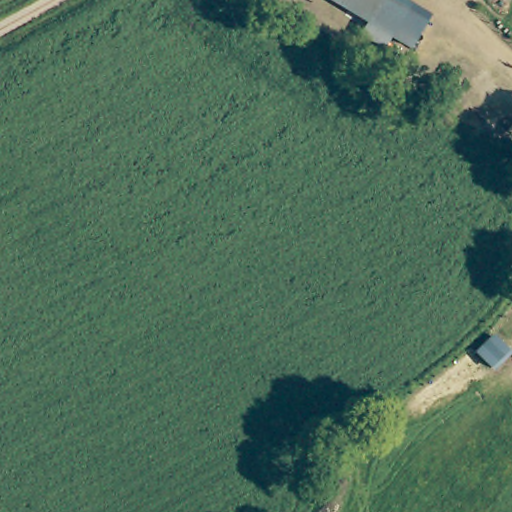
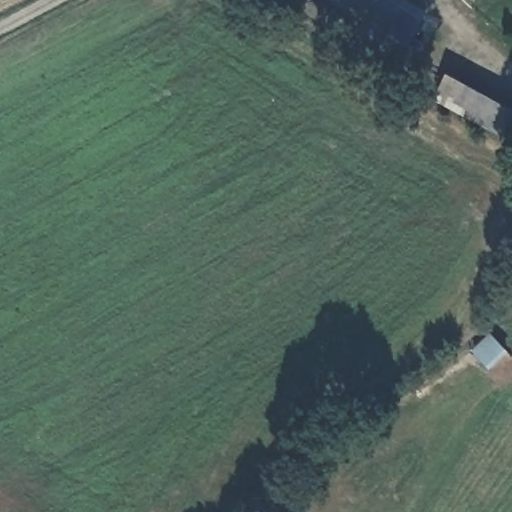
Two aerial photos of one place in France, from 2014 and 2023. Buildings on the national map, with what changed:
unchanged [(349,0),(406,0),(412,4),(433,16),(410,54),(388,42),(367,29),(375,16),(349,0)]
new [(512,129),(507,138),(440,103),(453,78),(512,110),(512,129)]

